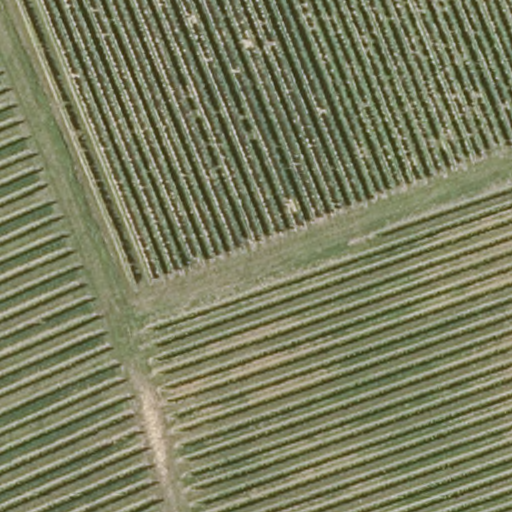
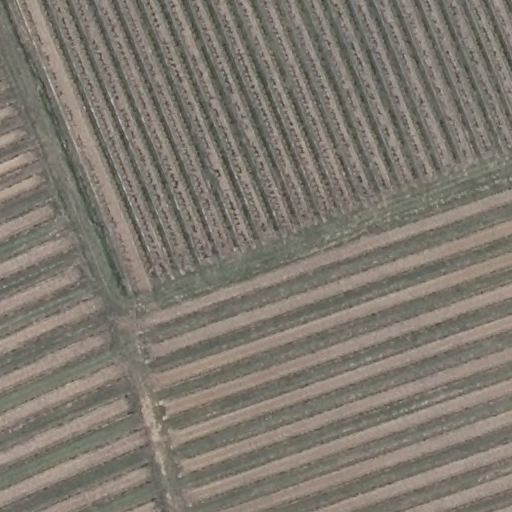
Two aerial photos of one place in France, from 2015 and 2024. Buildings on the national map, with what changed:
[]

